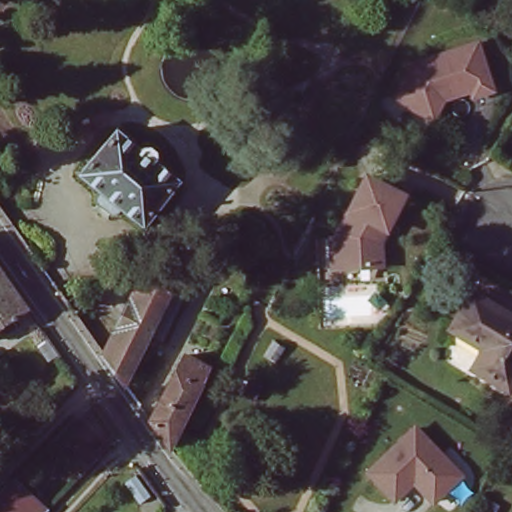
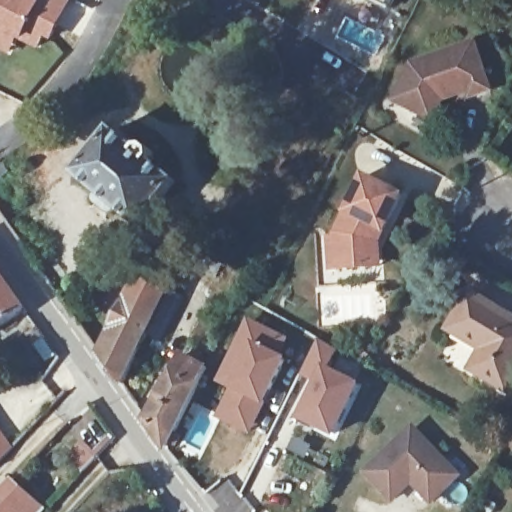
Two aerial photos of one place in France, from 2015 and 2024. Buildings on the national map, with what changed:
new [(51,41),(45,39),(38,51),(19,41),(10,55),(0,51),(0,0),(73,0),(51,41)]
new [(390,9),(372,0),(394,0),(390,9)]
unchanged [(470,82),(430,95),(425,107),(395,91),(406,68),(478,41),(491,82),(472,88),(470,82)]
unchanged [(96,205),(93,200),(98,191),(77,174),(112,131),(138,151),(141,148),(147,147),(154,152),(155,158),(152,164),(176,182),(141,225),(121,209),(116,215),(110,216),(96,205)]
unchanged [(329,237),(337,236),(336,231),(367,171),(407,192),(389,226),(388,226),(382,238),(384,262),(380,262),(339,265),(331,265),(329,237)]
unchanged [(195,241),(227,256),(215,279),(184,264),(195,241)]
unchanged [(157,327),(152,338),(138,331),(112,381),(88,348),(90,344),(96,347),(133,272),(138,261),(166,275),(160,286),(174,292),(157,327)]
unchanged [(26,308),(0,326),(0,272),(26,308)]
unchanged [(508,389),(473,369),(485,349),(451,329),(471,295),(512,319),(512,381),(508,389)]
new [(295,342),(289,359),(266,407),(253,435),(219,418),(233,390),(217,383),(249,318),(295,342)]
unchanged [(47,338),(33,347),(26,335),(39,327),(47,338)]
new [(341,352),(331,368),(363,385),(336,437),(299,419),(317,382),(304,377),(321,341),(341,352)]
unchanged [(200,365),(202,362),(208,365),(173,438),(168,449),(147,421),(182,356),(200,365)]
unchanged [(412,424),(460,473),(432,500),(409,479),(392,497),(367,471),(412,424)]
new [(13,448),(0,461),(0,428),(13,448)]
unchanged [(41,509),(38,512),(0,512),(0,493),(11,481),(41,509)]

